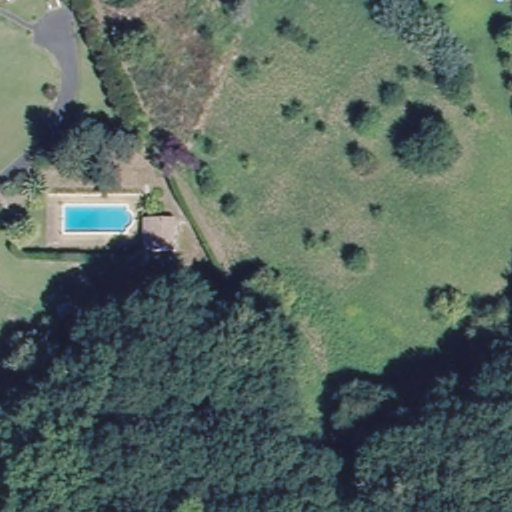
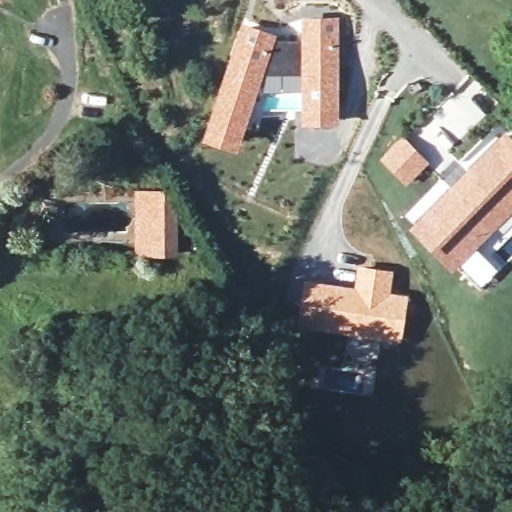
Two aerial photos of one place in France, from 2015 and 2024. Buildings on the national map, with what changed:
new [(300,18),(339,17),(339,79),(338,127),(301,126),(300,92),(299,39),(300,18)]
new [(241,23),(277,37),(259,91),(236,151),(201,139),(241,23)]
new [(277,37),(299,39),(300,92),(259,91),(277,37)]
new [(460,265),(452,271),(409,228),(415,221),(407,215),(442,179),(435,172),(451,156),(463,166),(502,131),(512,140),(512,232),(493,250),(487,245),(488,243),(485,240),(477,249),(498,269),(480,284),(460,265)]
new [(402,136),(428,162),(406,185),(379,159),(402,136)]
unchanged [(176,246),(146,246),(146,215),(169,215),(174,230),(176,246)]
new [(304,279),(353,287),(358,265),(394,271),(391,291),(409,295),(401,342),(369,339),(296,327),(304,279)]

